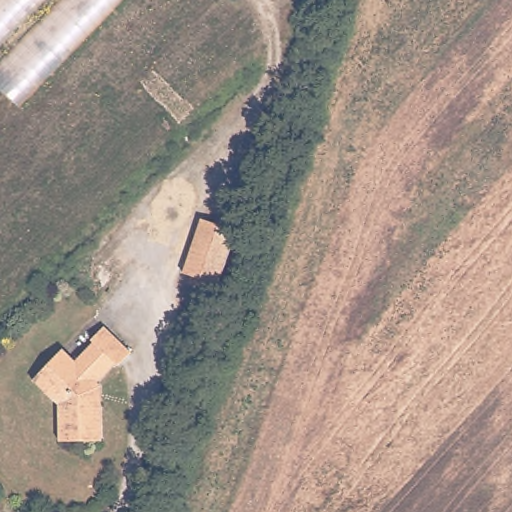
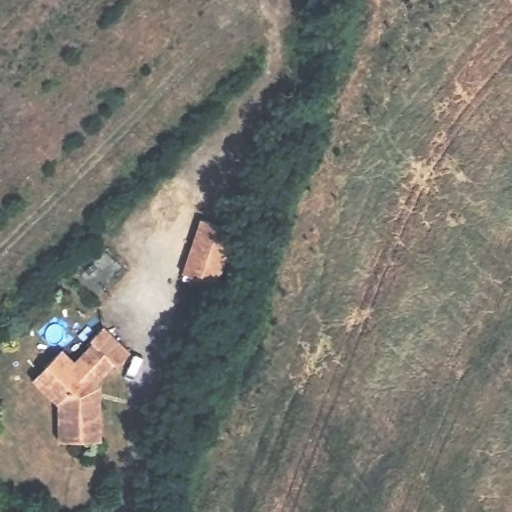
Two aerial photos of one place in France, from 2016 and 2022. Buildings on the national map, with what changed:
demolished [(125,0),(20,110),(0,92),(0,0),(125,0)]
unchanged [(180,272),(199,218),(234,231),(217,275),(215,284),(212,290),(212,291),(186,282),(189,275),(180,272)]
unchanged [(100,401),(102,437),(60,440),(57,403),(40,388),(30,380),(42,367),(57,348),(72,360),(89,340),(86,337),(98,323),(127,348),(114,362),(112,359),(94,379),(98,383),(100,401)]

